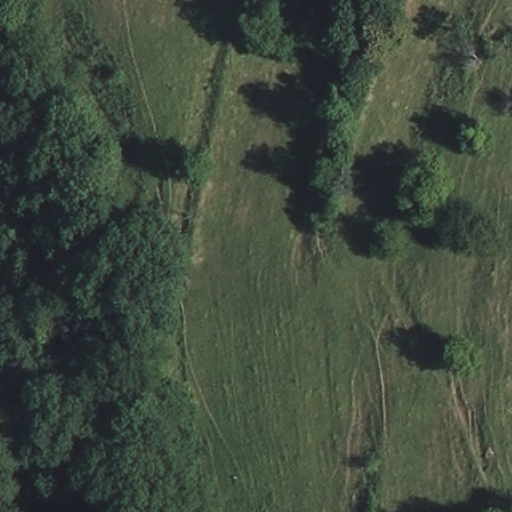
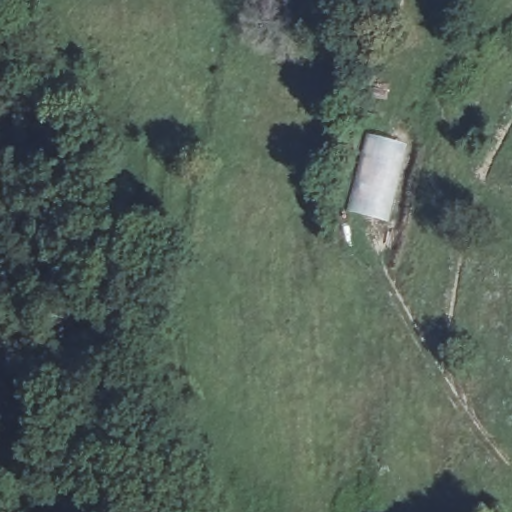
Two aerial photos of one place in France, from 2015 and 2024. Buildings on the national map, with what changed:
new [(364,133),(407,143),(388,222),(343,211),(364,133)]

